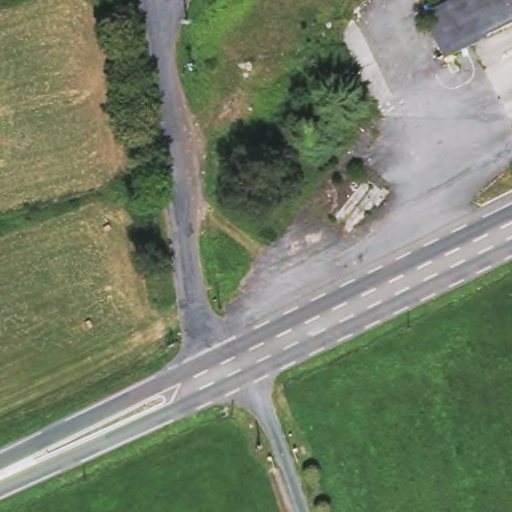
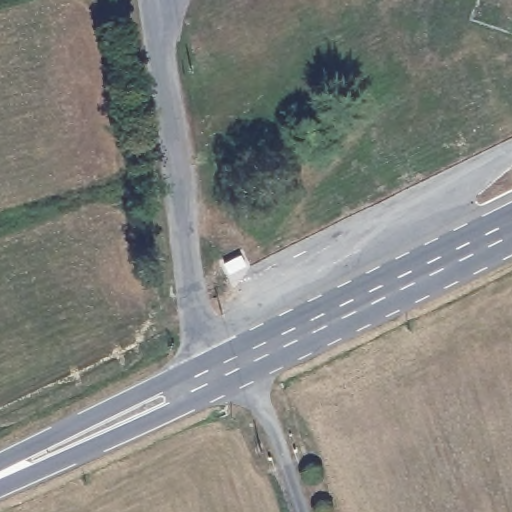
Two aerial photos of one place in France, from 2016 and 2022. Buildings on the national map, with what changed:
demolished [(484,35),(443,56),(429,28),(436,24),(431,14),(459,0),(512,0),(512,26),(484,35)]

